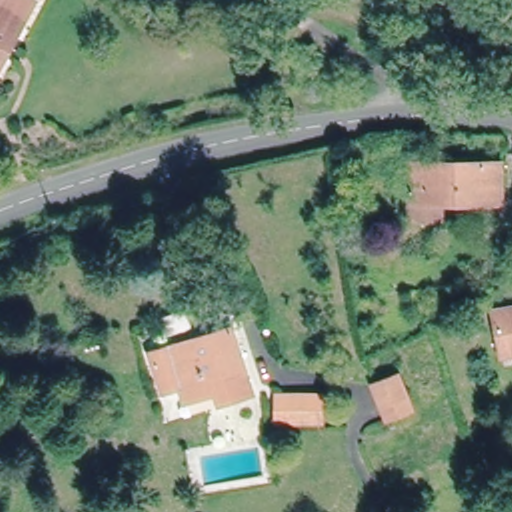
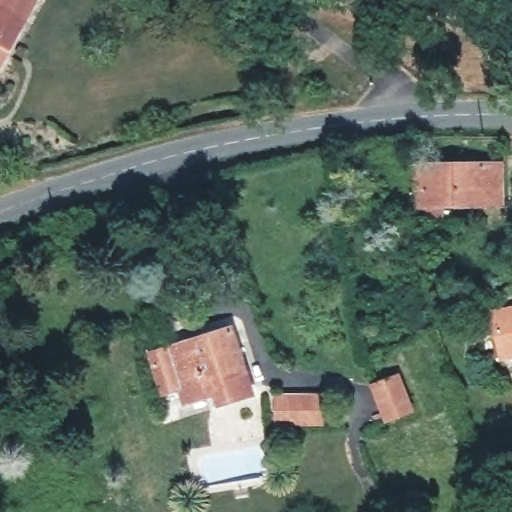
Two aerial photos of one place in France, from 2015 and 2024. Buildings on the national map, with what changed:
unchanged [(0,60),(0,0),(19,0),(28,5),(0,60)]
unchanged [(503,162),(504,204),(443,204),(443,222),(409,223),(407,162),(503,162)]
unchanged [(512,308),(512,351),(502,354),(490,314),(512,308)]
unchanged [(233,327),(254,396),(217,406),(214,395),(181,404),(178,391),(161,395),(150,353),(233,327)]
unchanged [(398,374),(412,408),(383,419),(369,385),(398,374)]
unchanged [(279,396),(307,394),(308,416),(280,416),(279,396)]

